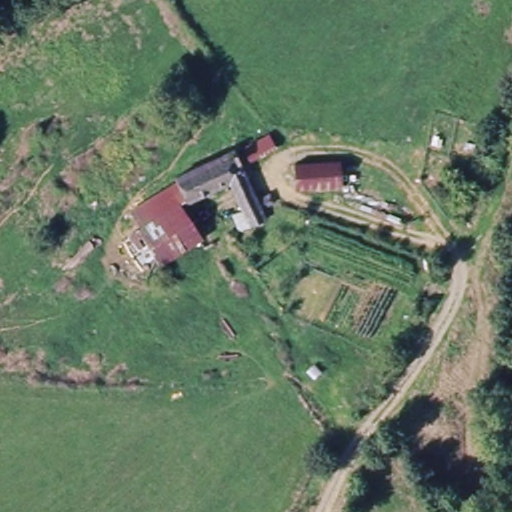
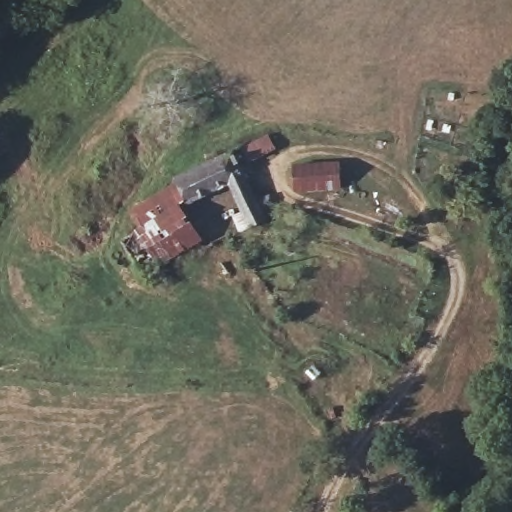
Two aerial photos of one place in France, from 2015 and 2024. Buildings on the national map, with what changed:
unchanged [(263,210),(269,218),(254,227),(227,181),(183,208),(200,237),(202,239),(147,276),(124,242),(144,230),(133,213),(176,186),(173,181),(228,149),(258,200),(270,193),(275,202),(263,210)]
unchanged [(299,200),(297,175),(343,172),(344,200),(299,200)]

